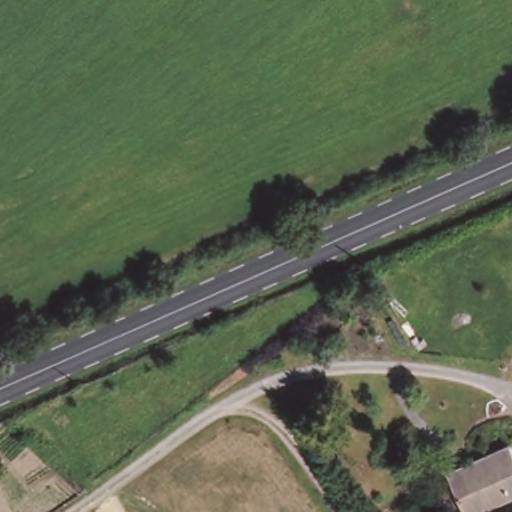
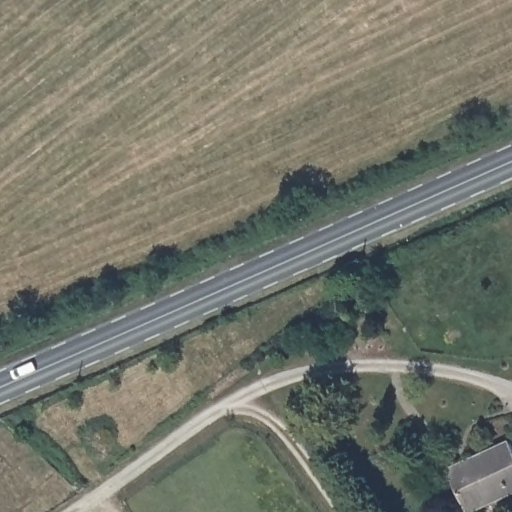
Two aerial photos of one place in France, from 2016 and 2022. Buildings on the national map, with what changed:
unchanged [(451,477),(448,470),(471,460),(509,442),(512,448),(512,493),(471,512),(467,512),(451,477)]

